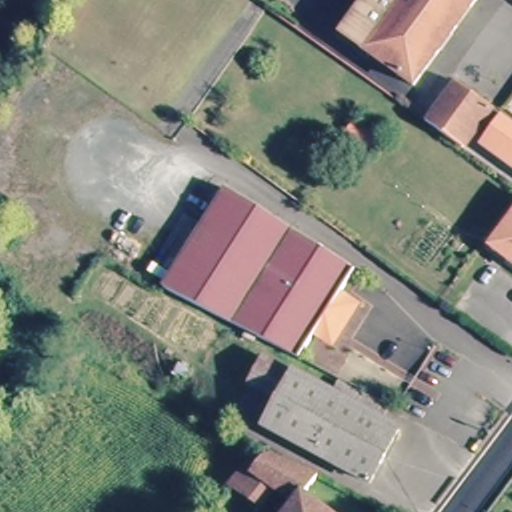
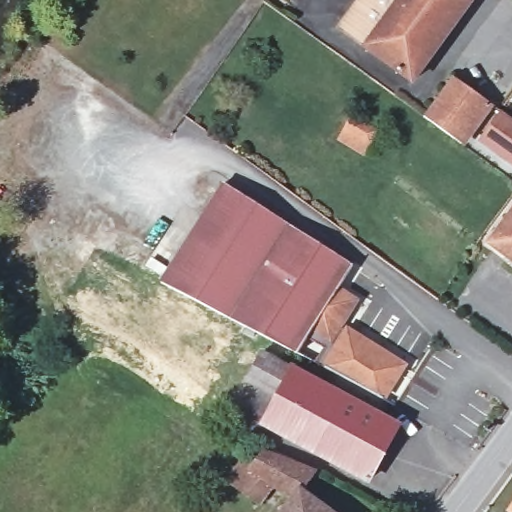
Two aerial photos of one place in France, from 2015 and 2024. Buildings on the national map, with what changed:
unchanged [(468,0),(424,60),(349,5),(353,0),(468,0)]
unchanged [(424,60),(409,79),(336,23),(349,5),(424,60)]
unchanged [(454,79),(491,105),(464,142),(426,115),(454,79)]
unchanged [(512,163),(483,142),(504,115),(512,121),(512,163)]
unchanged [(231,175),(355,266),(339,290),(357,302),(331,341),(315,330),(299,355),(209,308),(163,284),(231,175)]
unchanged [(512,268),(494,254),(487,247),(491,241),(512,213),(512,268)]
new [(384,400),(320,365),(346,323),(408,363),(384,400)]
unchanged [(279,398),(248,380),(263,353),(332,390),(335,383),(388,410),(385,418),(401,427),(400,430),(373,482),(296,441),(264,425),(279,398)]
unchanged [(304,493),(327,512),(284,512),(292,501),(274,488),(260,507),(228,484),(248,456),(258,462),(265,453),(278,459),(317,475),(304,493)]
new [(512,503),(512,512),(507,512),(506,511),(512,503)]

